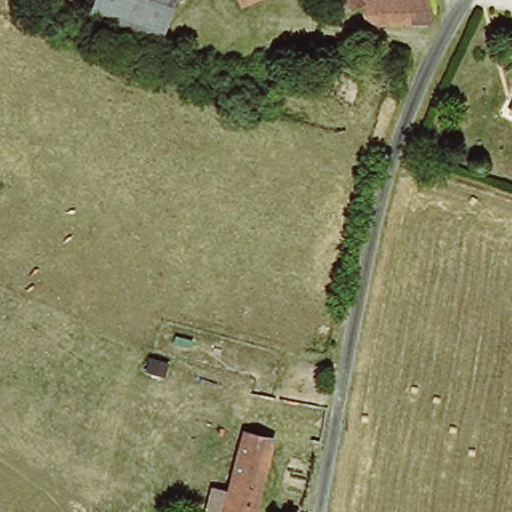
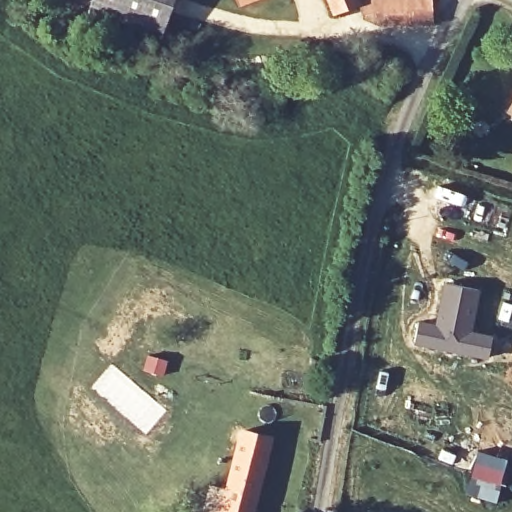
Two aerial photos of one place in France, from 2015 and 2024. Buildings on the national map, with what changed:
unchanged [(93,9),(95,0),(182,0),(166,39),(93,9)]
unchanged [(336,15),(330,0),(359,0),(361,6),(336,15)]
unchanged [(439,0),(440,16),(382,26),(380,15),(362,18),(361,6),(394,0),(439,0)]
new [(437,324),(446,284),(481,291),(473,332),(493,336),(488,359),(416,345),(420,321),(437,324)]
unchanged [(231,463),(245,389),(264,392),(255,436),(275,440),(260,512),(223,512),(231,463)]

